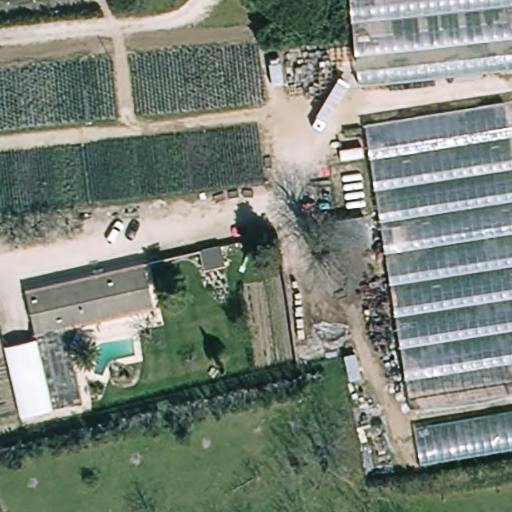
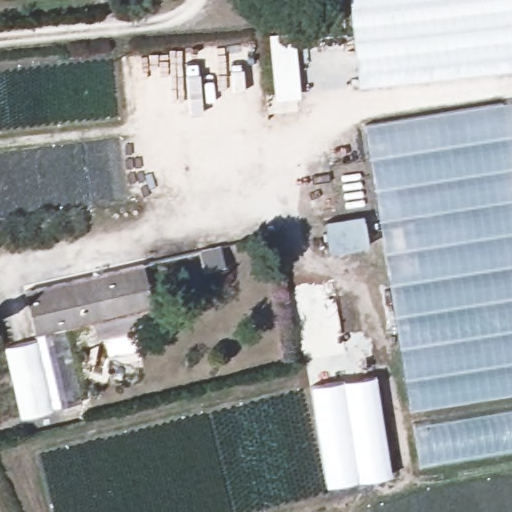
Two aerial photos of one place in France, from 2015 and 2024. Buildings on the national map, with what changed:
unchanged [(360,85),(350,0),(512,0),(512,67),(360,85)]
unchanged [(250,14),(251,28),(221,31),(221,17),(250,14)]
new [(274,100),(268,34),(295,32),(301,98),(274,100)]
unchanged [(512,101),(512,385),(409,401),(368,123),(512,101)]
unchanged [(146,267),(156,311),(63,335),(50,288),(146,267)]
unchanged [(74,397),(76,406),(48,412),(18,296),(50,288),(63,335),(79,395),(74,397)]
new [(390,473),(326,483),(311,384),(375,374),(390,473)]
unchanged [(420,464),(414,425),(512,409),(512,449),(420,464)]

